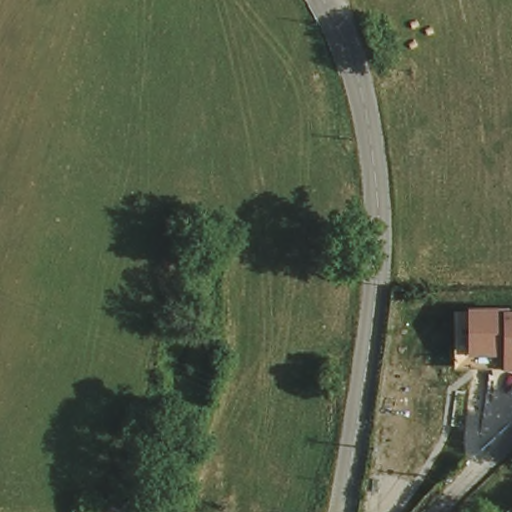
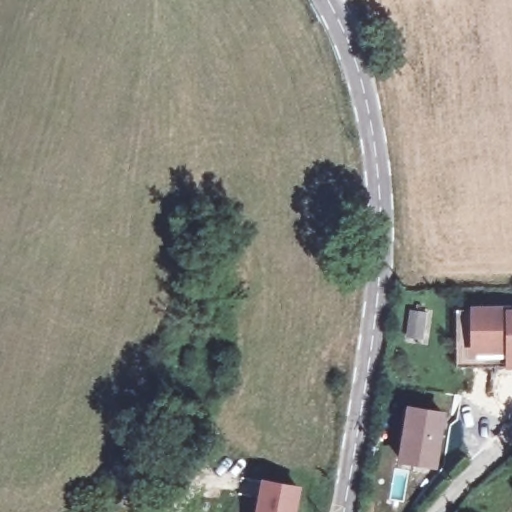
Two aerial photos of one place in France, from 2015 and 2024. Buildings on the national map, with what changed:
unchanged [(512,375),(509,375),(508,356),(470,355),(473,307),(512,309),(512,375)]
new [(409,308),(427,311),(423,342),(404,339),(409,308)]
demolished [(444,387),(437,419),(398,415),(403,381),(444,387)]
new [(406,403),(449,412),(439,469),(397,462),(406,403)]
new [(259,478),(301,485),(296,512),(253,512),(259,478)]

